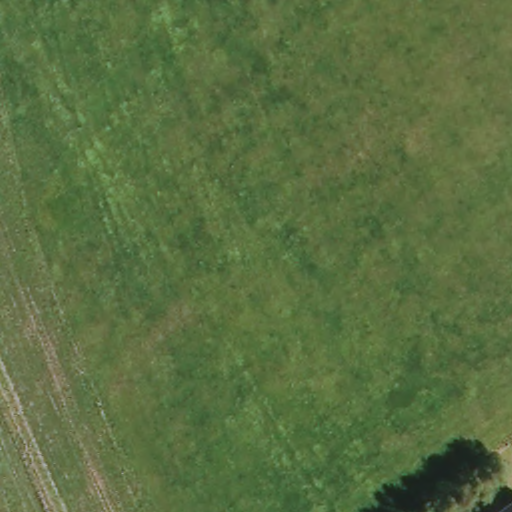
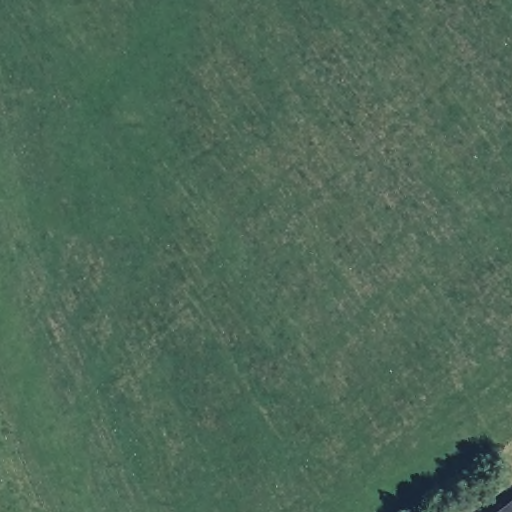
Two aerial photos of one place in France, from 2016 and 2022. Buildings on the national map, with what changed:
unchanged [(508,512),(512,509),(512,512),(508,512)]

